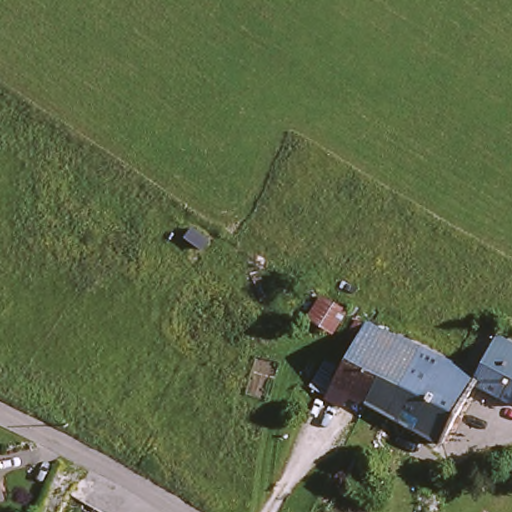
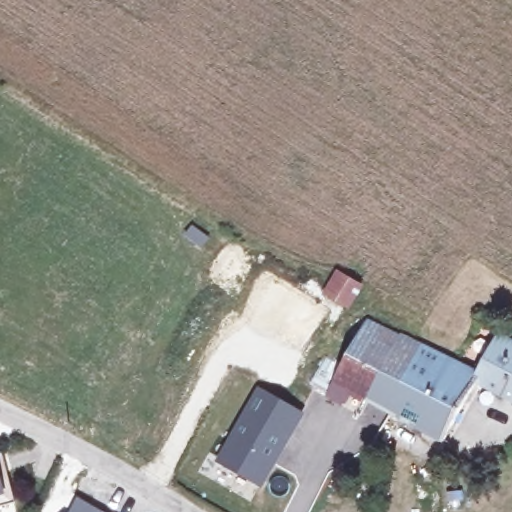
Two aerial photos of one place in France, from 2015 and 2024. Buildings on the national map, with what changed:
unchanged [(350,310),(332,339),(306,321),(322,295),(350,310)]
unchanged [(331,405),(373,318),(379,322),(395,330),(398,324),(410,330),(373,404),(355,396),(348,413),(331,405)]
unchanged [(430,340),(485,366),(495,347),(498,341),(505,328),(512,332),(512,396),(502,391),(479,380),(477,385),(449,440),(395,415),(373,404),(410,330),(430,340)]
new [(262,389),(302,410),(288,436),(282,433),(258,476),(224,457),(262,389)]
unchanged [(0,505),(0,490),(3,505),(0,505)]

